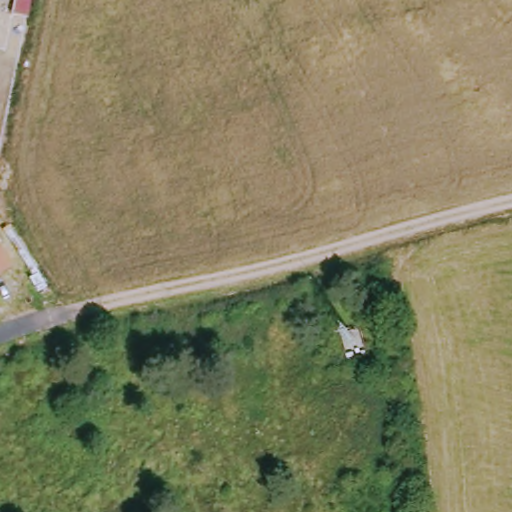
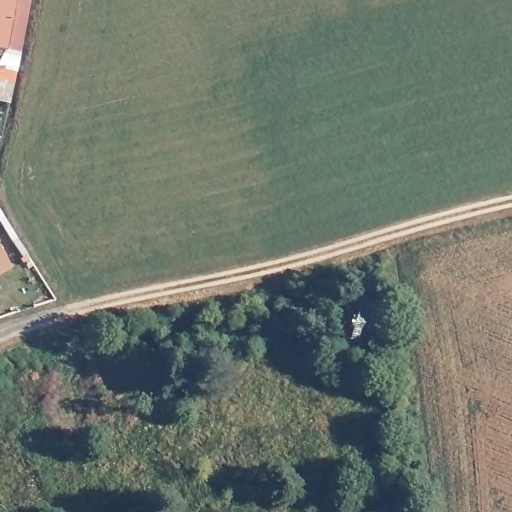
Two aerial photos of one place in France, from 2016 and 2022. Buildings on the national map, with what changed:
new [(0,47),(0,0),(30,0),(20,51),(7,49),(0,47)]
unchanged [(0,273),(0,248),(10,266),(0,273)]

